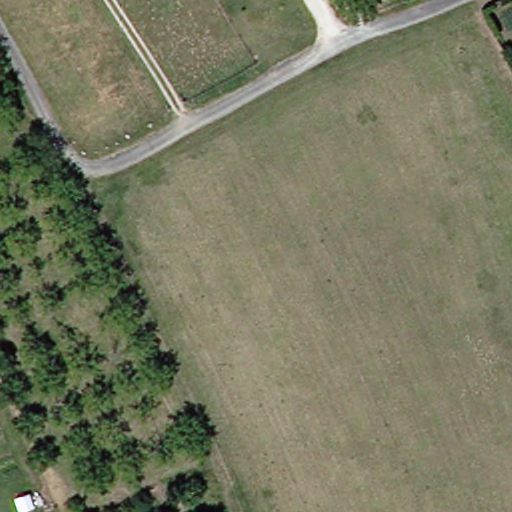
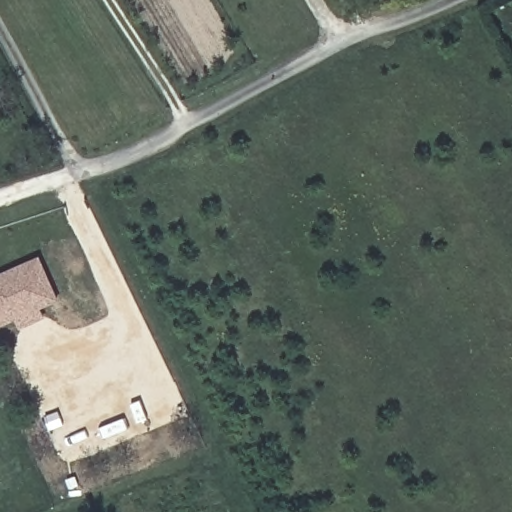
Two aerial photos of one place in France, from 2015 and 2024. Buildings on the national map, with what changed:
new [(60,300),(42,310),(45,319),(20,328),(17,319),(0,325),(0,275),(41,256),(60,300)]

